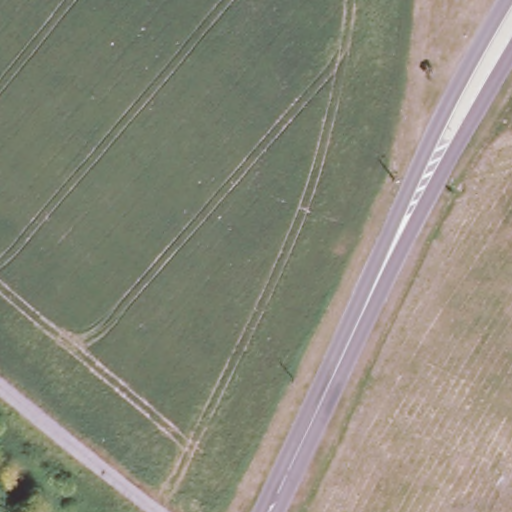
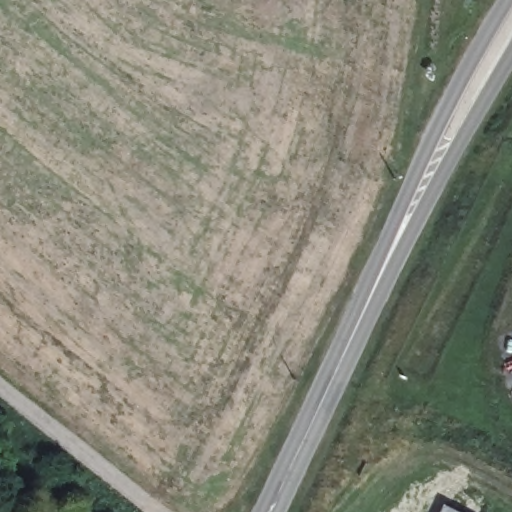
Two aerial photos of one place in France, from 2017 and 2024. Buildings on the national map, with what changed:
new [(462,512),(440,512),(444,503),(462,512)]

